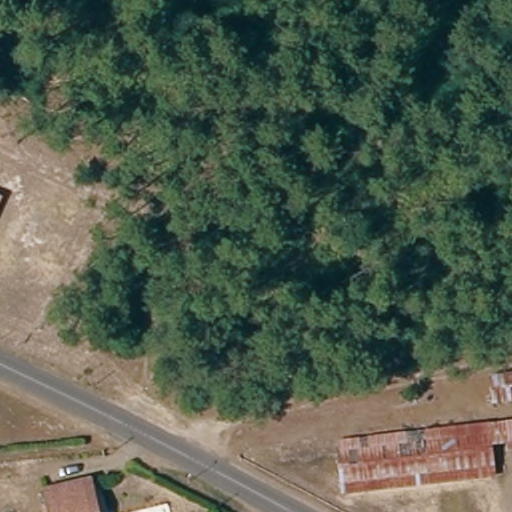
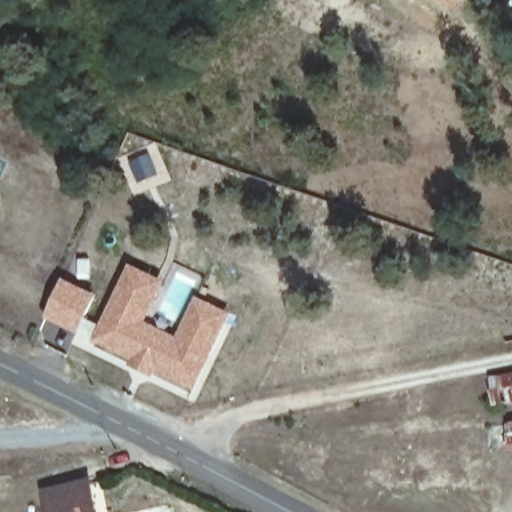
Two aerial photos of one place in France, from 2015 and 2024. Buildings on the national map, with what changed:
new [(439,0),(461,0),(455,10),(439,0)]
new [(163,278),(146,321),(176,336),(195,295),(231,313),(194,390),(156,371),(153,375),(129,364),(132,357),(94,338),(130,264),(163,278)]
new [(96,295),(80,334),(45,319),(62,278),(96,295)]
unchanged [(488,379),(512,374),(512,404),(493,407),(488,379)]
unchanged [(512,439),(505,440),(503,419),(512,418),(512,439)]
demolished [(483,422),(489,464),(337,486),(331,444),(483,422)]
unchanged [(42,492),(89,481),(96,512),(45,512),(42,492)]

